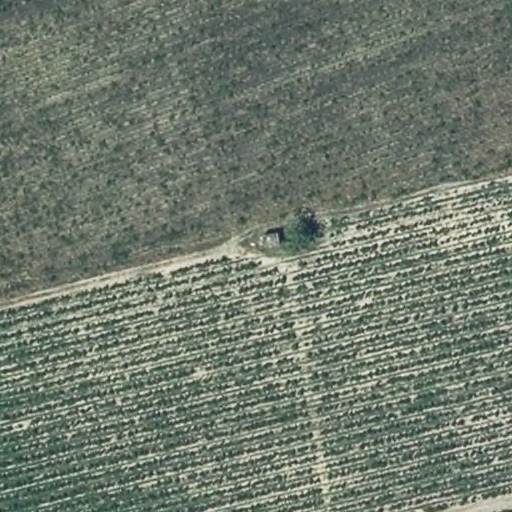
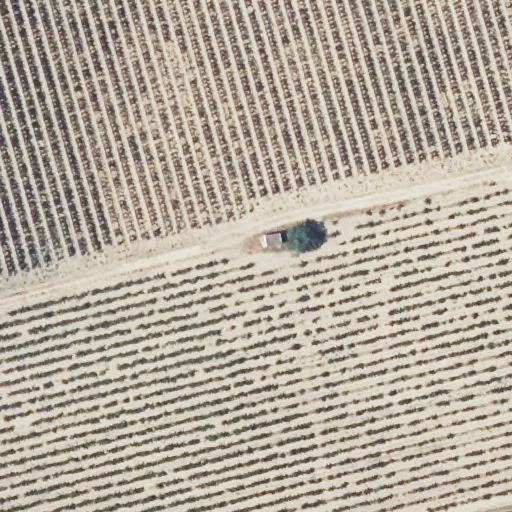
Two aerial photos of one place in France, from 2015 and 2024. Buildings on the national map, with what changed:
unchanged [(281,231),(284,249),(258,252),(257,236),(281,231)]

